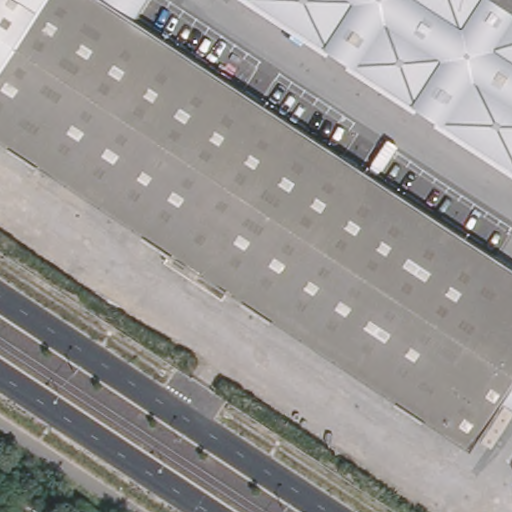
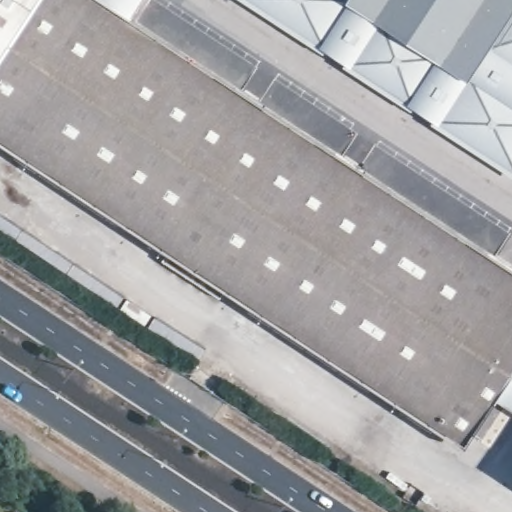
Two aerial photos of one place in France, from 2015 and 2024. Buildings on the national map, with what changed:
unchanged [(127,17),(398,195),(512,271),(512,373),(494,400),(466,442),(227,287),(218,301),(159,263),(168,249),(0,140),(0,0),(100,0),(127,17)]
unchanged [(127,17),(100,0),(138,0),(127,17)]
unchanged [(255,0),(512,0),(512,169),(255,0)]
unchanged [(512,373),(512,413),(494,400),(512,373)]

